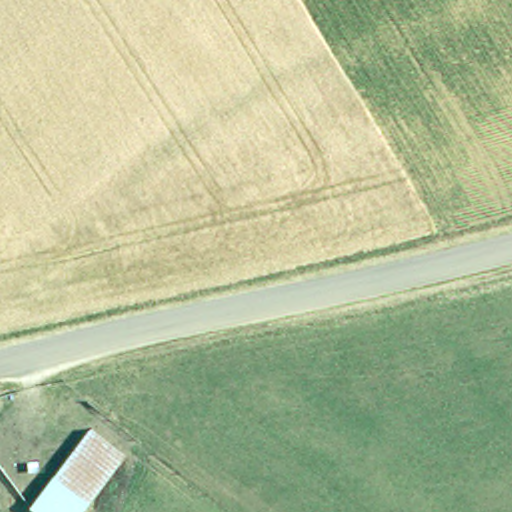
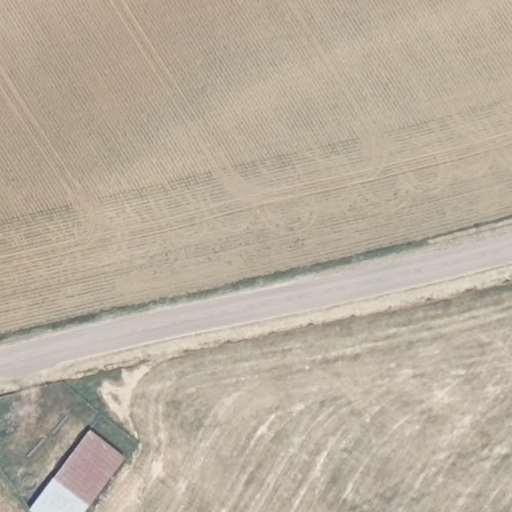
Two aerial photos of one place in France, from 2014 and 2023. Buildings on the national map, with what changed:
unchanged [(80,512),(29,512),(23,507),(85,426),(123,455),(80,512)]

